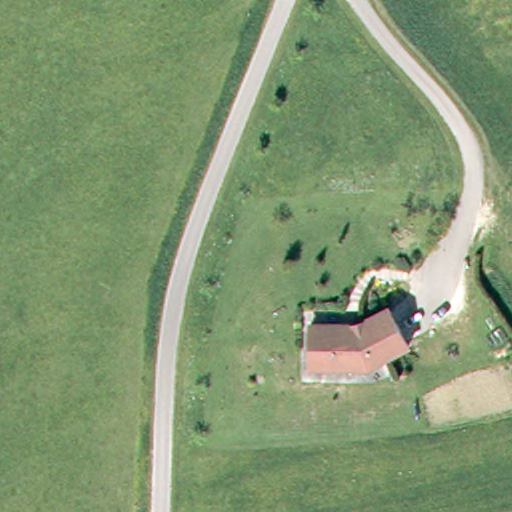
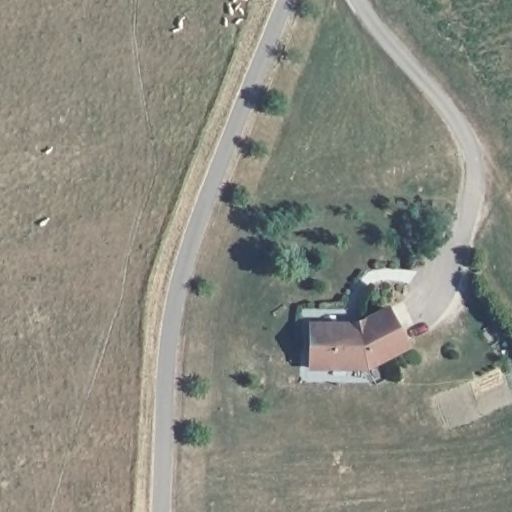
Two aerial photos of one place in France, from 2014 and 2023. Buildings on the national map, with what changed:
unchanged [(394,305),(417,346),(375,367),(316,368),(317,325),(362,323),(394,305)]

